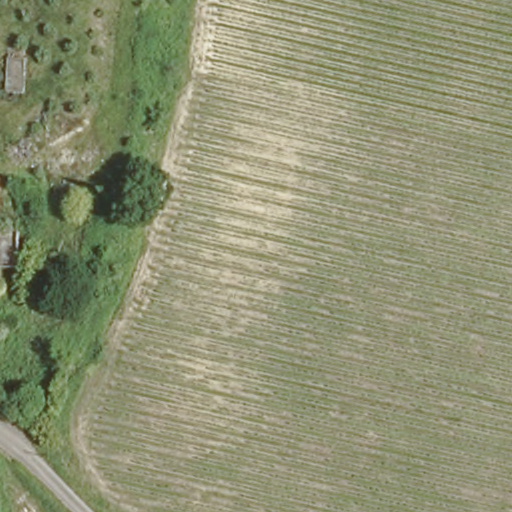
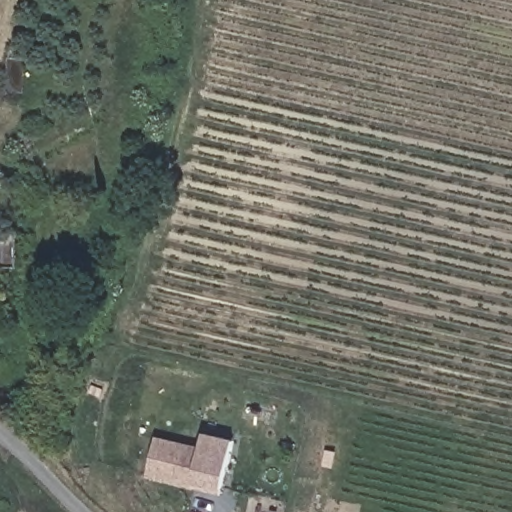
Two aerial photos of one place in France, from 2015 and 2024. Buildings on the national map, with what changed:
new [(223,490),(148,476),(157,435),(200,443),(203,432),(235,438),(223,490)]

